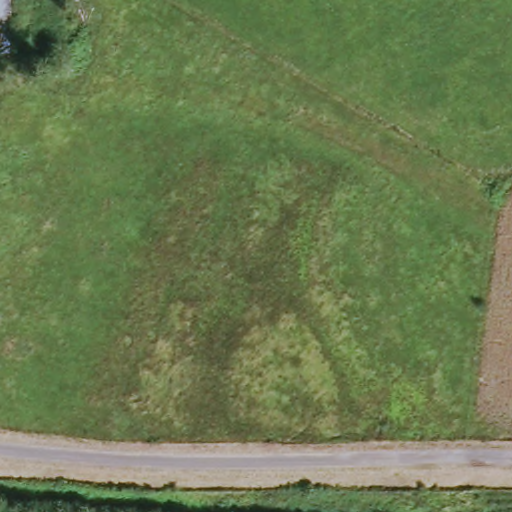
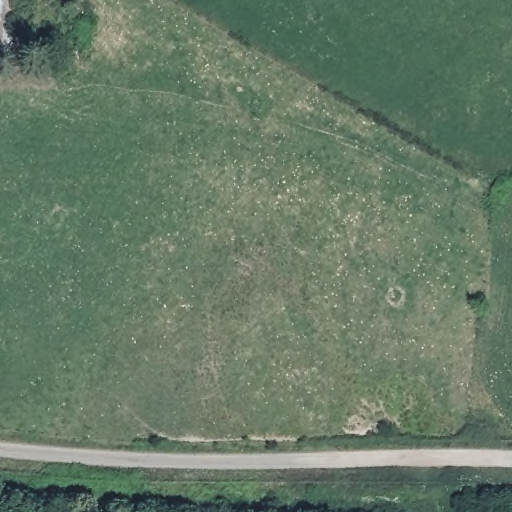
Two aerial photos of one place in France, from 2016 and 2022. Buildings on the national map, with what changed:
unchanged [(13,51),(0,50),(0,0),(20,0),(13,51)]

